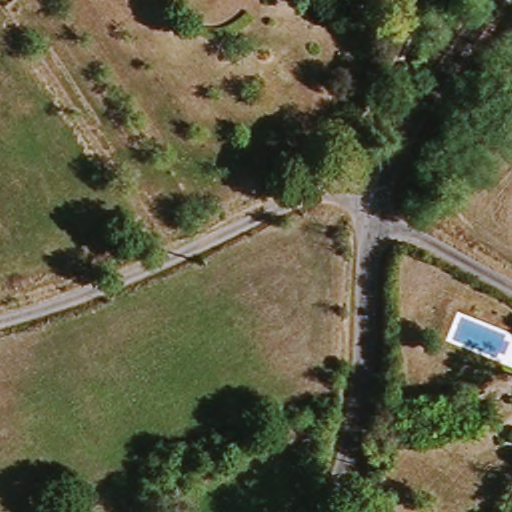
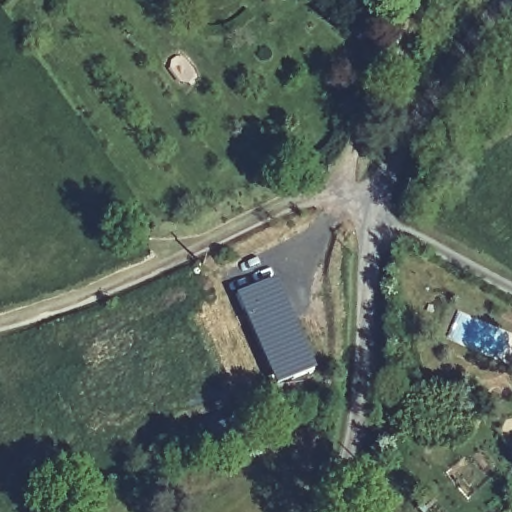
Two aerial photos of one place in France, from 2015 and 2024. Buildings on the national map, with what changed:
new [(277,387),(235,296),(275,278),(318,371),(277,387)]

